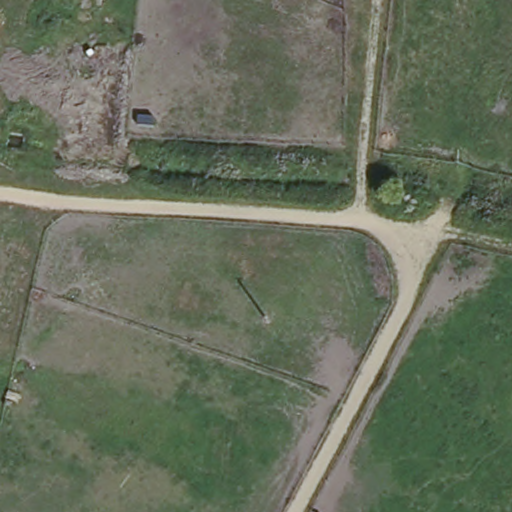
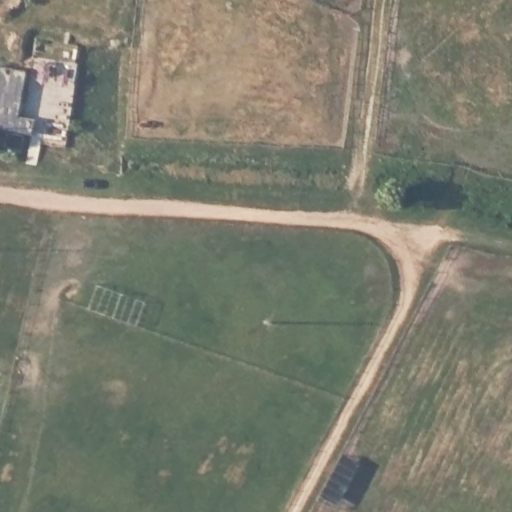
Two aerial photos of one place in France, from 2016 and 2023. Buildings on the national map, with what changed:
new [(20,115),(36,119),(34,134),(0,128),(0,66),(29,71),(20,115)]

